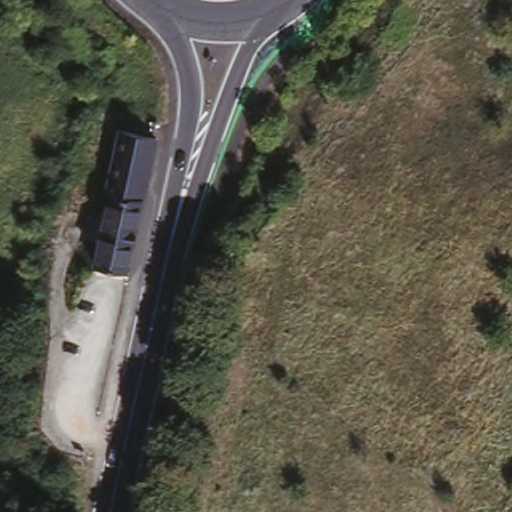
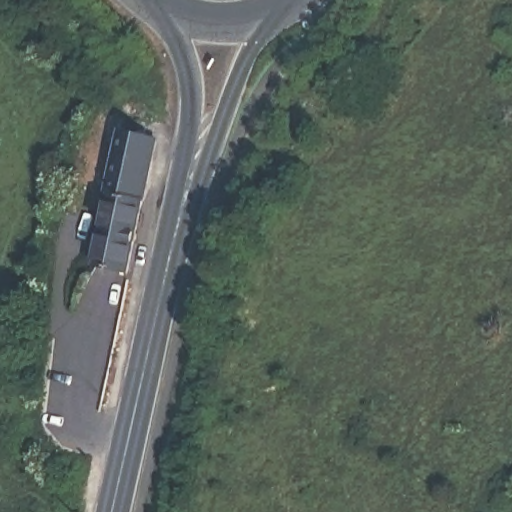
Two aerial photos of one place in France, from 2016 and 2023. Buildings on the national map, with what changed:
unchanged [(155,137),(140,205),(126,275),(94,267),(114,189),(109,172),(117,129),(152,137),(155,137)]

